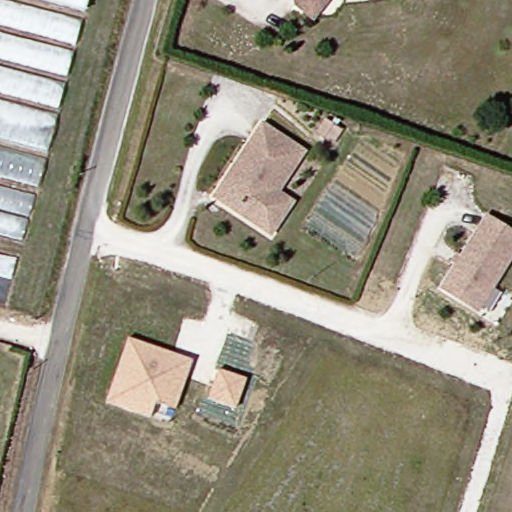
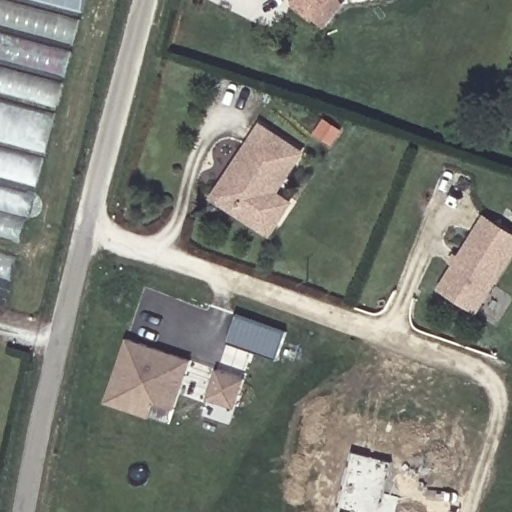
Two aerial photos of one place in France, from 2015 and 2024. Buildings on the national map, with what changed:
unchanged [(96,17),(31,246),(0,237),(0,0),(101,0),(96,17)]
unchanged [(330,0),(315,11),(307,5),(306,0),(335,0),(330,0)]
unchanged [(345,129),(338,141),(322,132),(328,120),(345,129)]
unchanged [(246,215),(228,206),(242,178),(256,150),(266,130),(310,151),(288,195),(305,203),(292,227),(288,236),(246,215)]
unchanged [(512,231),(512,273),(490,314),(454,295),(492,221),(512,231)]
unchanged [(23,263),(11,298),(0,296),(0,257),(23,263)]
new [(273,358),(224,341),(233,314),(283,331),(273,358)]
unchanged [(175,408),(155,402),(150,417),(106,400),(127,339),(191,360),(175,408)]
new [(233,408),(204,398),(212,369),(244,379),(233,408)]
new [(338,512),(355,452),(391,461),(378,512),(338,512)]

